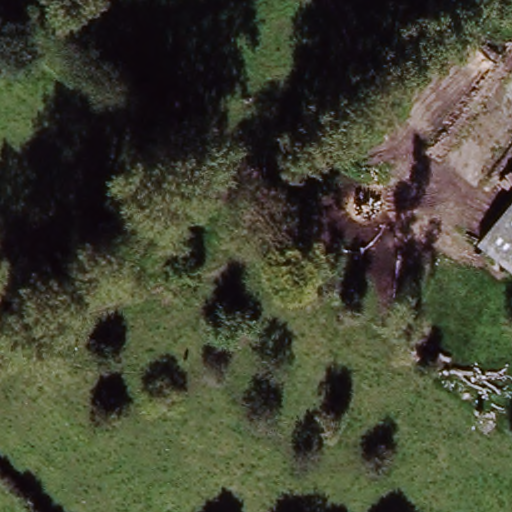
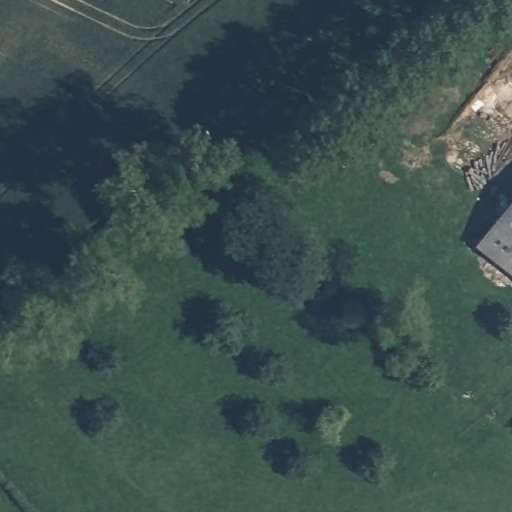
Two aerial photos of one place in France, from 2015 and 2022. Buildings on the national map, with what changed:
unchanged [(512,211),(512,273),(482,247),(512,211)]

